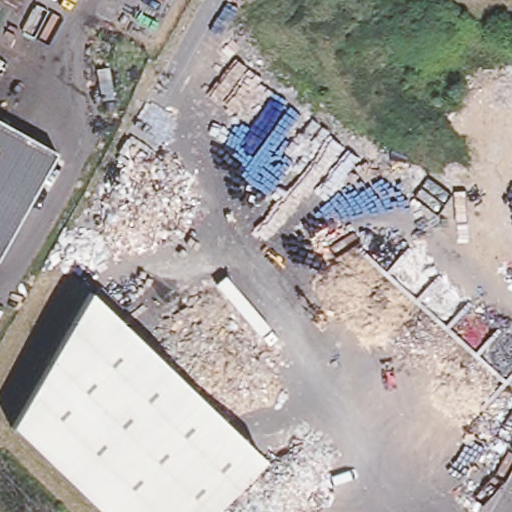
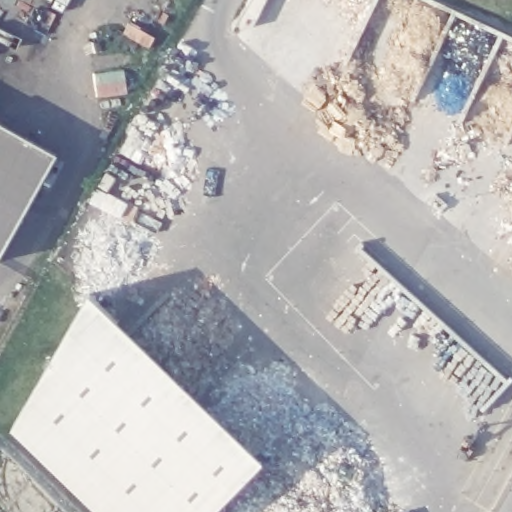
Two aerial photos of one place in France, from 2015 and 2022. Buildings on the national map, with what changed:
unchanged [(27,140),(0,188),(0,126),(27,140)]
unchanged [(27,140),(52,155),(0,249),(0,188),(27,140)]
unchanged [(214,512),(97,512),(12,430),(90,294),(263,460),(214,512)]

